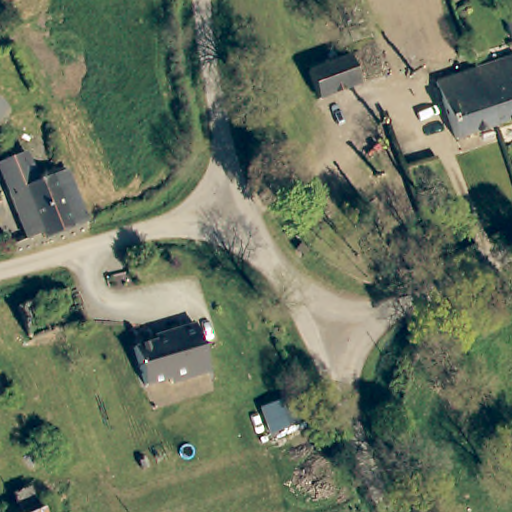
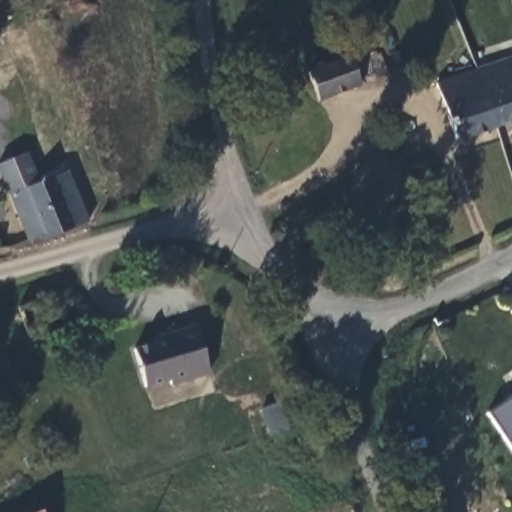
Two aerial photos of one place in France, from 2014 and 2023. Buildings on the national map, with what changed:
unchanged [(362,88),(321,101),(311,73),(352,59),(362,88)]
unchanged [(512,62),(512,125),(497,130),(477,74),(512,62)]
unchanged [(497,130),(458,142),(440,86),(477,74),(497,130)]
unchanged [(41,232),(25,238),(6,194),(0,182),(0,162),(20,153),(33,182),(48,176),(63,169),(84,221),(44,237),(41,232)]
unchanged [(204,367),(171,380),(168,375),(144,385),(131,347),(161,334),(160,330),(186,320),(204,367)]
new [(488,413),(512,397),(512,449),(488,413)]
unchanged [(282,429),(279,430),(268,403),(283,398),(294,425),(282,429)]
unchanged [(0,512),(0,501),(33,487),(41,508),(33,512),(0,512)]
unchanged [(33,512),(41,508),(43,512),(33,512)]

